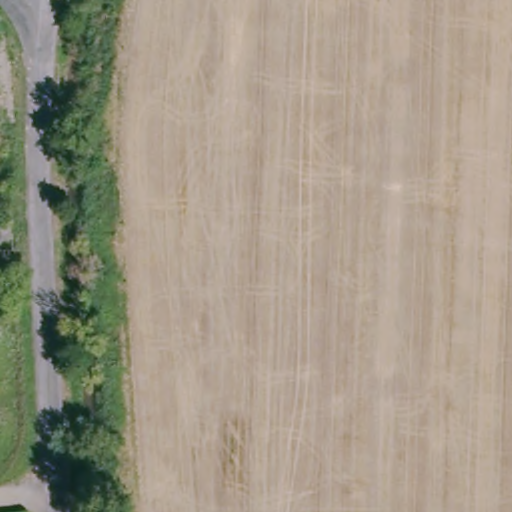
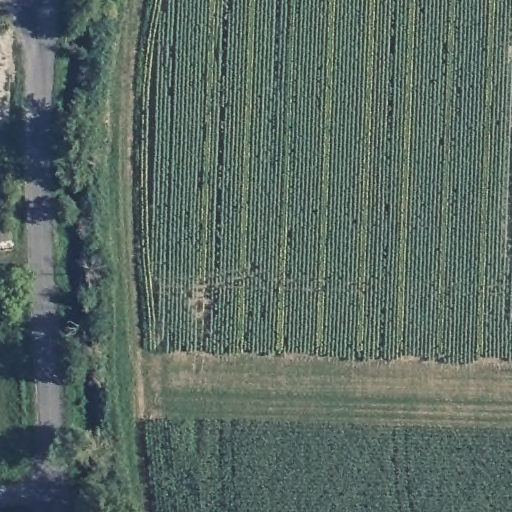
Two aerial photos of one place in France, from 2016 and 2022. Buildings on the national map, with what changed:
unchanged [(14,249),(0,251),(0,224),(10,224),(14,249)]

